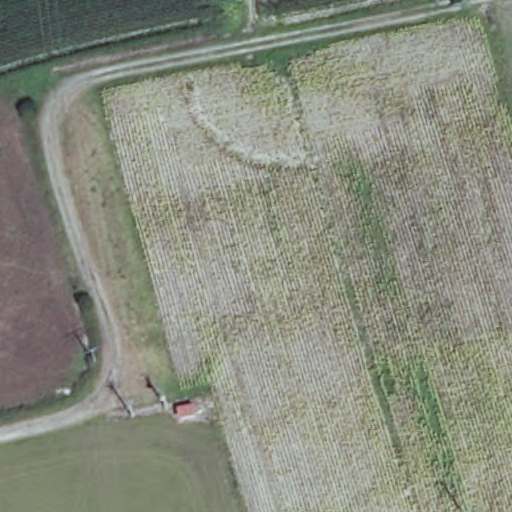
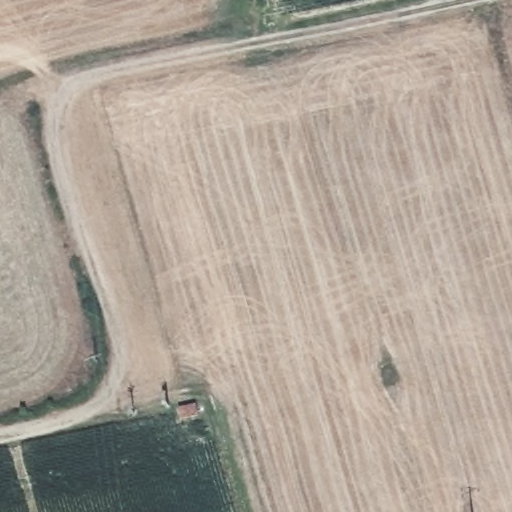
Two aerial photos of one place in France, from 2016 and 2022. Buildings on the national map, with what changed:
unchanged [(186,399),(205,396),(209,415),(176,421),(172,402),(186,399)]

